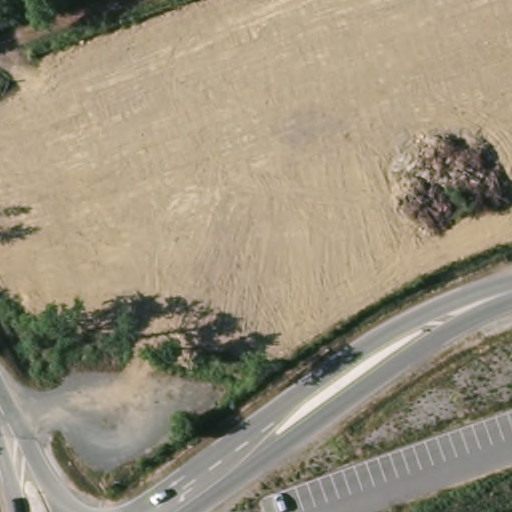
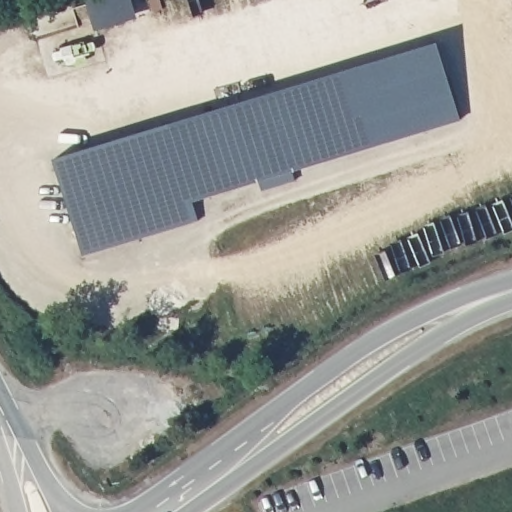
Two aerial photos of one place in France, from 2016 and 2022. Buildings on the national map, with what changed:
new [(438,43),(461,120),(194,201),(200,221),(83,255),(54,160),(438,43)]
demolished [(90,169),(102,204),(59,220),(45,185),(90,169)]

